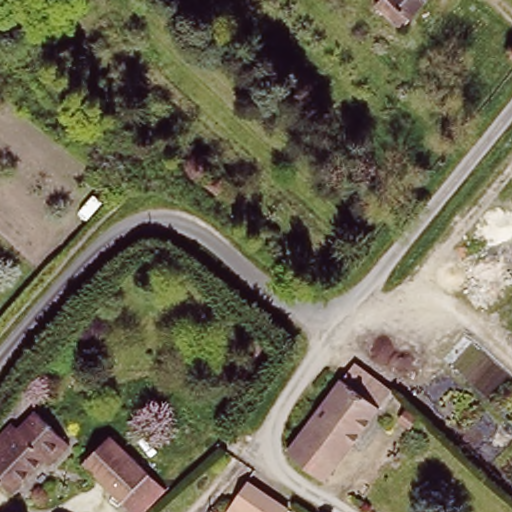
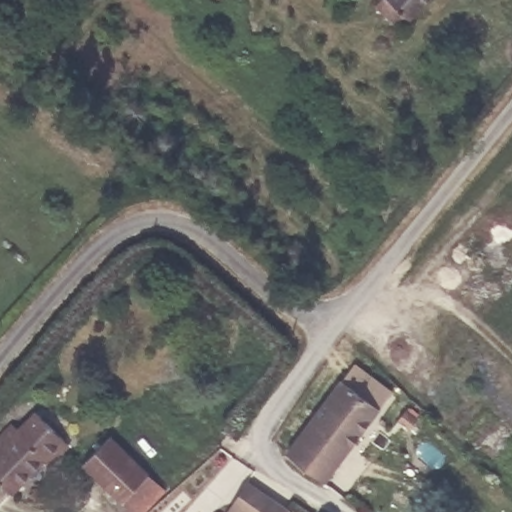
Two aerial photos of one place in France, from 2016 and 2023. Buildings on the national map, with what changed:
unchanged [(385,10),(392,0),(441,0),(415,33),(385,10)]
unchanged [(383,401),(317,490),(280,462),(346,372),(383,401)]
unchanged [(22,430),(39,413),(71,446),(52,465),(46,458),(13,492),(0,479),(0,440),(16,424),(22,430)]
unchanged [(146,512),(134,512),(124,502),(85,463),(112,437),(152,474),(150,476),(166,492),(146,512)]
unchanged [(232,511),(252,484),(292,512),(234,512),(232,511)]

